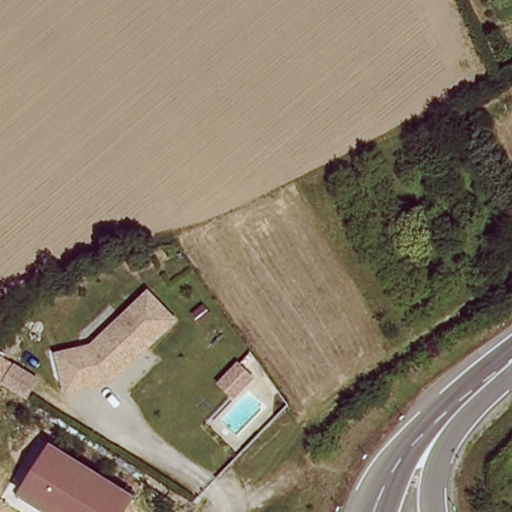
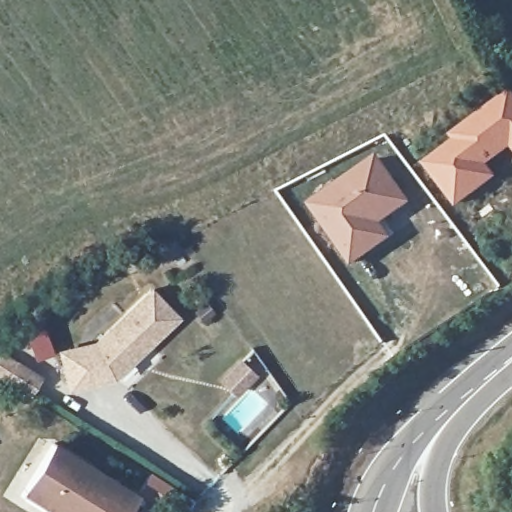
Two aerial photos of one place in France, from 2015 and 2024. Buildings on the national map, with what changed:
new [(453,136),(510,93),(512,95),(512,165),(458,206),(427,165),(457,142),(453,136)]
new [(383,225),(393,239),(352,267),(308,205),(379,155),(413,204),(383,225)]
unchanged [(113,385),(110,387),(66,393),(61,355),(96,351),(156,304),(178,333),(131,371),(116,383),(113,385)]
unchanged [(41,375),(31,392),(11,380),(21,363),(41,375)]
unchanged [(133,496),(124,512),(80,512),(30,482),(51,447),(133,496)]
unchanged [(39,512),(20,500),(30,482),(80,512),(39,512)]

